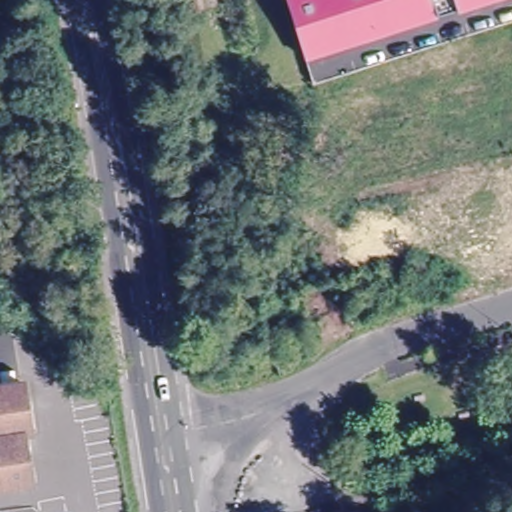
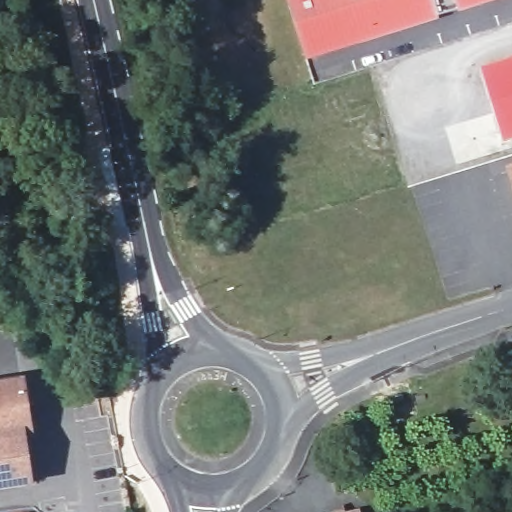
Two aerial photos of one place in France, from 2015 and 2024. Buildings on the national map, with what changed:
unchanged [(288,0),(492,0),(306,59),(288,0)]
new [(480,69),(512,59),(512,140),(502,143),(480,69)]
new [(506,168),(512,166),(512,190),(506,168)]
unchanged [(35,435),(25,436),(34,482),(0,488),(0,384),(25,380),(35,435)]
unchanged [(335,511),(343,510),(344,512),(335,512),(335,511)]
unchanged [(360,510),(360,512),(352,512),(360,510)]

